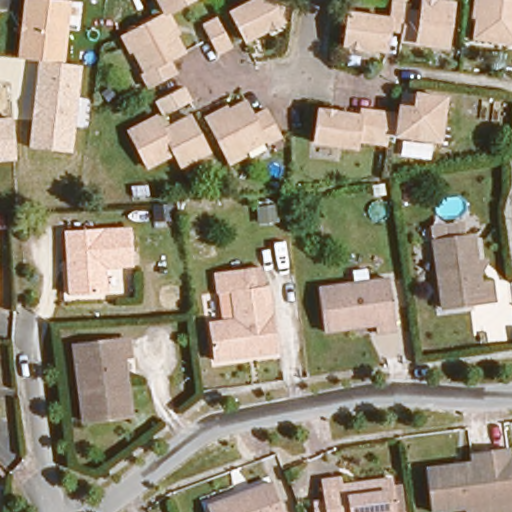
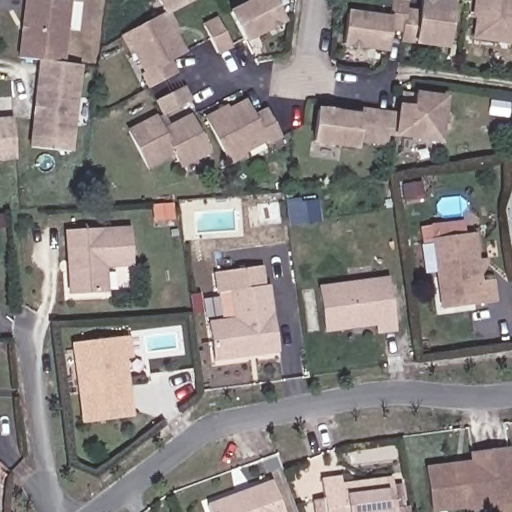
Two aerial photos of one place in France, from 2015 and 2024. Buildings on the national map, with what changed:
unchanged [(64,64),(81,66),(72,151),(27,147),(37,60),(16,57),(24,0),(67,0),(71,0),(64,64)]
unchanged [(163,5),(170,23),(162,27),(173,50),(161,55),(169,72),(140,85),(132,67),(136,66),(128,48),(122,50),(115,35),(155,16),(148,0),(176,0),(163,5)]
unchanged [(282,21),(243,39),(229,10),(253,0),(272,0),(282,21)]
unchanged [(405,4),(420,6),(421,0),(436,0),(454,3),(447,44),(402,36),(403,26),(384,22),(380,46),(340,40),(345,11),(378,16),(381,0),(406,0),(405,4)]
unchanged [(512,45),(479,40),(483,12),(475,11),(477,0),(481,0),(488,1),(489,0),(512,0),(512,45)]
unchanged [(238,54),(221,62),(206,34),(225,25),(238,54)]
unchanged [(189,101),(163,113),(157,99),(182,87),(189,101)]
unchanged [(360,107),(401,113),(402,102),(416,105),(417,92),(445,95),(439,135),(388,127),(386,140),(355,135),(353,146),(316,141),(319,111),(359,116),(360,107)]
unchanged [(223,117),(247,105),(254,119),(268,113),(283,142),(265,151),(263,146),(248,153),(251,158),(232,167),(206,116),(220,110),(223,117)]
unchanged [(165,127),(194,115),(211,153),(182,165),(177,154),(149,166),(131,131),(161,119),(165,127)]
unchanged [(16,159),(0,161),(0,117),(10,116),(16,159)]
unchanged [(129,265),(100,265),(101,293),(61,294),(60,231),(128,230),(129,265)]
unchanged [(476,278),(491,277),(493,300),(441,307),(433,245),(470,240),(476,278)]
unchanged [(262,288),(268,288),(274,354),(210,360),(207,325),(234,322),(231,294),(216,295),(215,275),(259,270),(262,288)]
unchanged [(392,327),(375,330),(375,324),(347,327),(347,332),(328,334),(322,287),(387,280),(392,327)]
unchanged [(122,353),(113,354),(115,377),(125,376),(131,419),(85,426),(71,341),(120,335),(122,353)]
unchanged [(509,446),(509,455),(512,455),(512,499),(434,508),(429,465),(473,460),(472,450),(509,446)]
unchanged [(334,480),(334,488),(356,487),(356,480),(387,478),(389,512),(322,512),(319,481),(334,480)]
unchanged [(268,481),(280,512),(206,512),(204,506),(268,481)]

